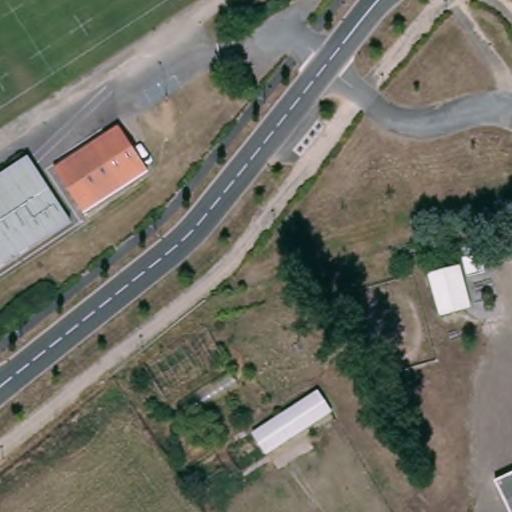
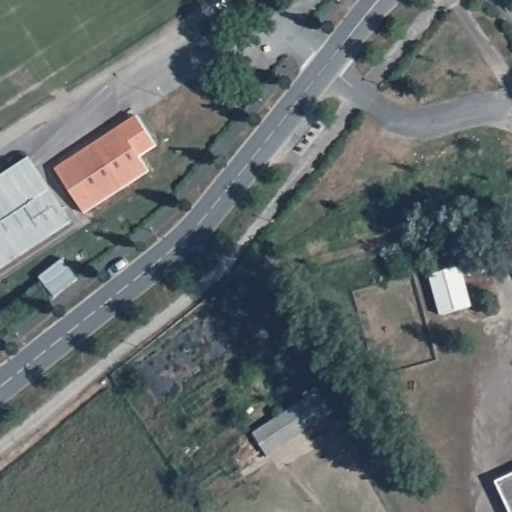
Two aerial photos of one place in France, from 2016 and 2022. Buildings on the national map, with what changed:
unchanged [(151,172),(88,214),(58,169),(85,151),(108,136),(123,128),(151,172)]
unchanged [(29,158),(70,220),(0,267),(0,175),(29,158)]
unchanged [(480,303),(450,313),(437,274),(467,264),(480,303)]
unchanged [(322,390),(335,411),(271,452),(258,431),(322,390)]
unchanged [(512,475),(512,503),(501,480),(512,475)]

